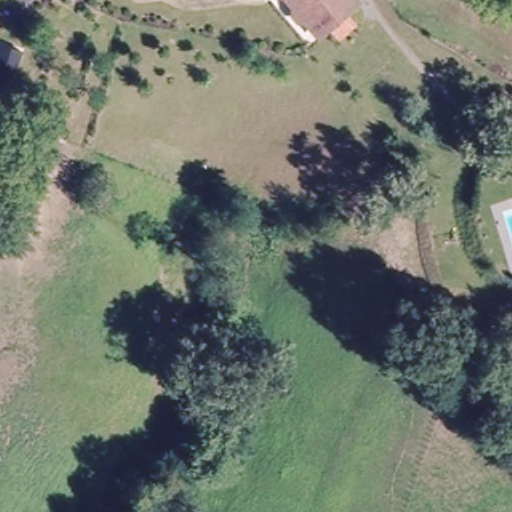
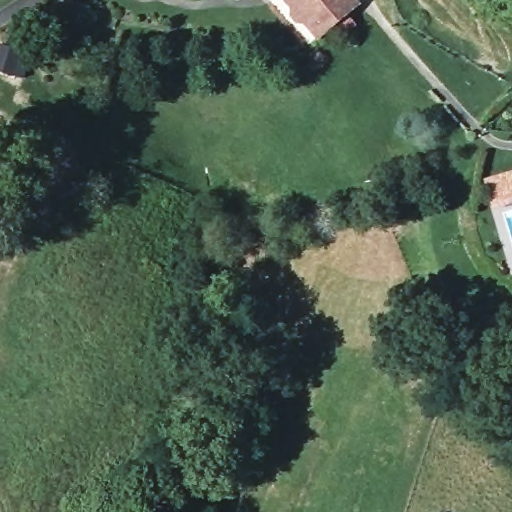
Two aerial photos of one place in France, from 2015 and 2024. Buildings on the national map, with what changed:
unchanged [(331,21),(319,31),(307,18),(298,17),(292,10),(293,1),(292,0),(356,0),(345,9),(356,21),(341,33),(331,21)]
new [(512,170),(512,204),(492,204),(484,178),(512,170)]

